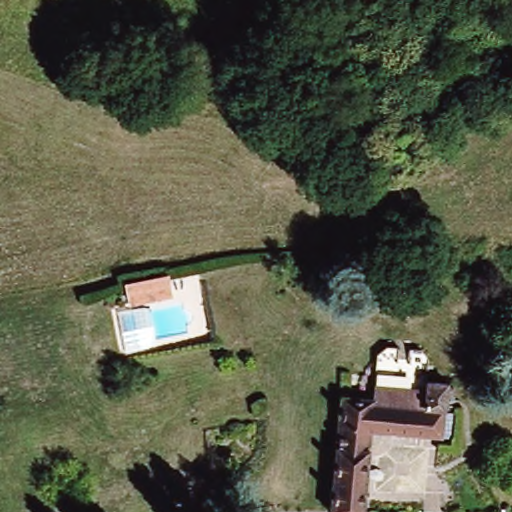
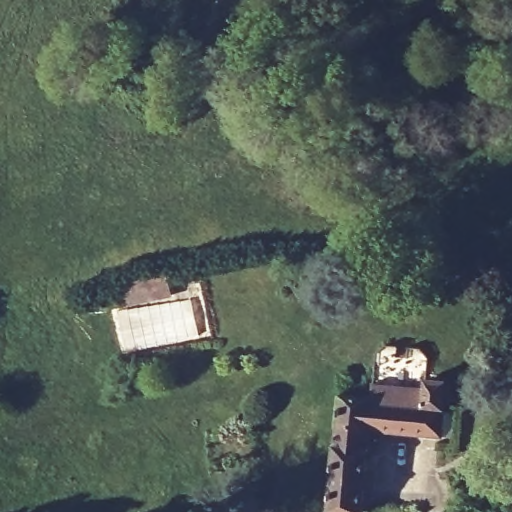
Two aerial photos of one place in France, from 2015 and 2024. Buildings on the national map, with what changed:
unchanged [(167,289),(131,296),(130,284),(128,275),(164,269),(165,278),(167,289)]
unchanged [(375,398),(365,397),(367,357),(376,347),(412,348),(420,358),(420,380),(416,379),(416,387),(376,385),(375,398)]
unchanged [(333,394),(365,397),(375,398),(376,385),(416,387),(416,379),(420,380),(441,381),(450,381),(449,399),(440,398),(440,403),(454,404),(452,433),(439,432),(365,426),(359,512),(327,512),(326,512),(333,394)]

